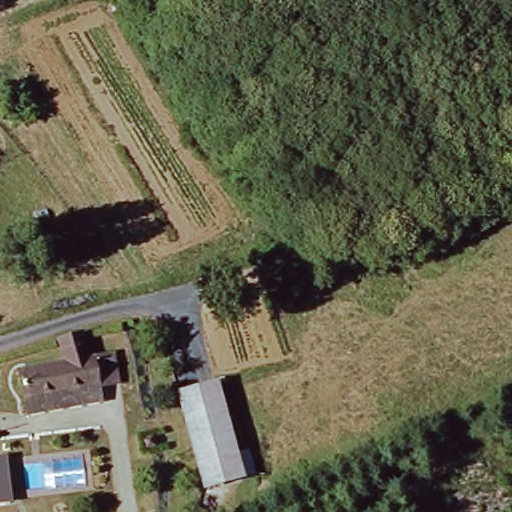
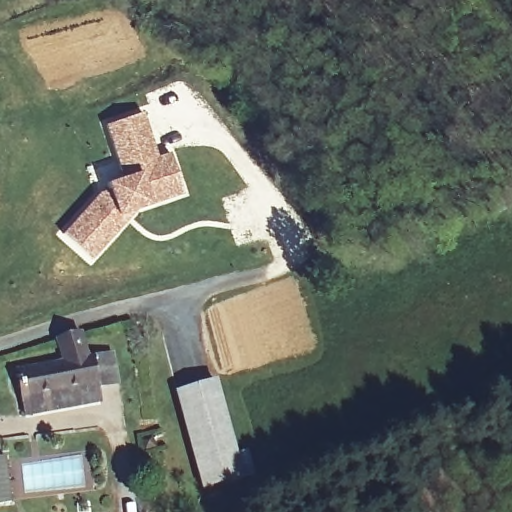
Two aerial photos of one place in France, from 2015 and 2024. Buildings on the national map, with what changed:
new [(143,111),(156,157),(170,151),(183,190),(141,204),(95,256),(65,232),(100,191),(110,186),(109,180),(125,174),(108,122),(143,111)]
unchanged [(25,400),(19,370),(56,361),(52,342),(88,333),(93,354),(113,350),(119,383),(99,386),(25,400)]
unchanged [(203,485),(185,389),(222,383),(239,477),(203,485)]
unchanged [(99,386),(103,407),(29,421),(25,400),(99,386)]
unchanged [(13,501),(0,503),(0,457),(8,456),(13,501)]

